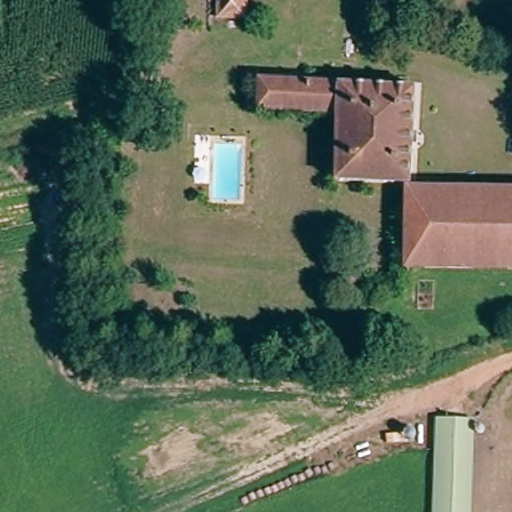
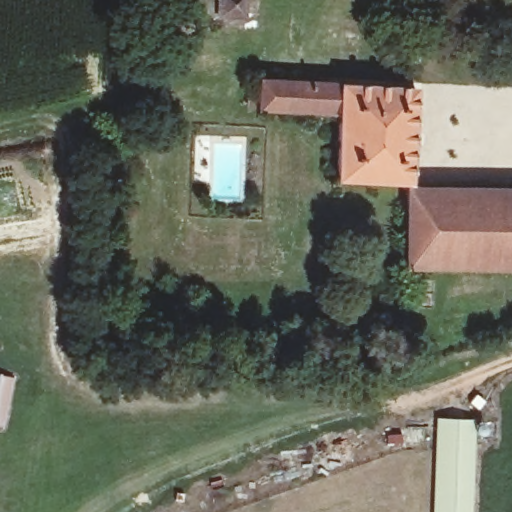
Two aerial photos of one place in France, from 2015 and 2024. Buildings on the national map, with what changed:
unchanged [(214,23),(216,0),(251,0),(250,23),(214,23)]
unchanged [(339,180),(343,113),(262,111),(264,75),(418,87),(414,184),(407,183),(339,180)]
unchanged [(406,270),(407,192),(512,191),(512,271),(436,271),(406,270)]
new [(14,379),(3,427),(0,426),(0,375),(14,379)]
unchanged [(477,422),(475,512),(438,512),(441,421),(477,422)]

